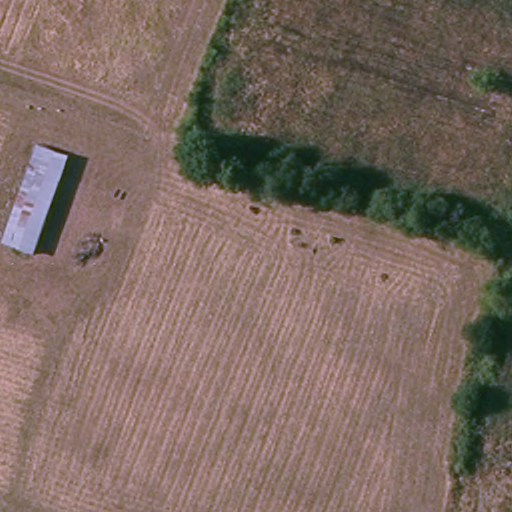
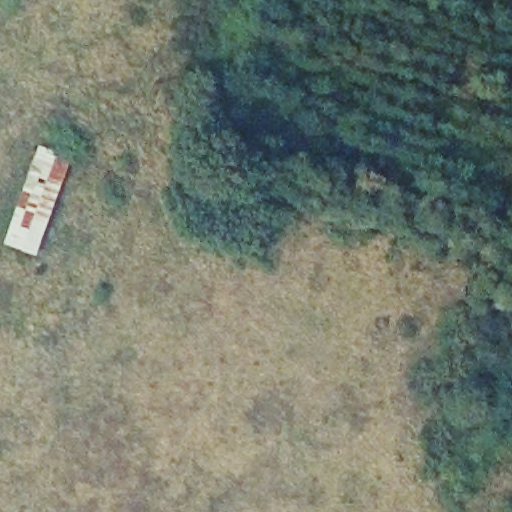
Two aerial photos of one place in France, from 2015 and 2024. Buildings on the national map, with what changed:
unchanged [(56,144),(57,140),(74,145),(32,249),(2,239),(39,140),(56,144)]

